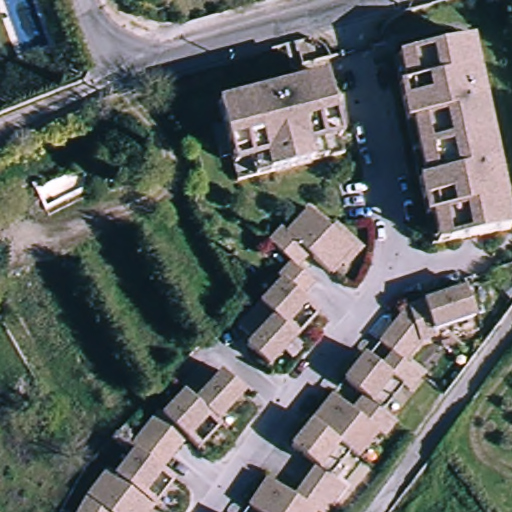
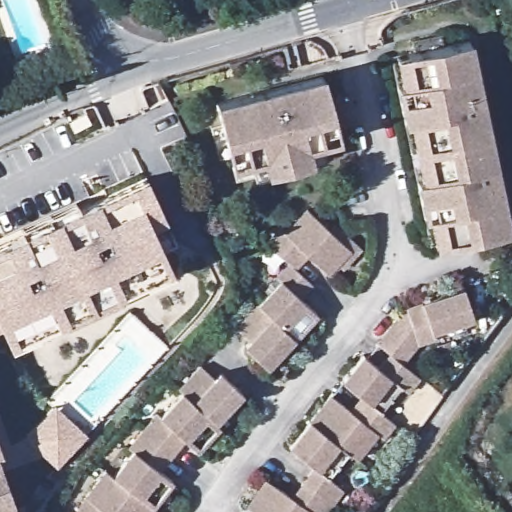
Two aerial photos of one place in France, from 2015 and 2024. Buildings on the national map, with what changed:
unchanged [(417,52),(447,45),(471,40),(511,228),(434,244),(394,57),(417,52)]
unchanged [(324,74),(344,153),(236,178),(231,154),(223,124),(218,100),(324,74)]
demolished [(94,190),(44,212),(34,188),(84,166),(94,190)]
new [(176,240),(161,246),(173,271),(8,347),(0,329),(0,245),(22,234),(18,227),(77,200),(80,206),(146,176),(166,219),(176,240)]
unchanged [(351,252),(329,276),(308,256),(296,269),(293,266),(269,244),(281,231),(286,236),(309,212),(351,252)]
unchanged [(304,300),(319,314),(296,338),(262,306),(284,282),(281,279),(293,266),(296,269),(299,273),(315,287),(304,300)]
unchanged [(397,307),(453,287),(463,315),(421,330),(423,337),(408,341),(394,359),(378,347),(370,342),(397,307)]
unchanged [(269,367),(248,348),(248,347),(253,342),(240,330),(262,306),(296,338),(269,367)]
unchanged [(355,355),(359,358),(370,342),(378,347),(394,359),(403,366),(409,371),(398,385),(394,382),(374,407),(360,396),(338,378),(355,355)]
unchanged [(171,389),(166,386),(186,363),(199,375),(203,369),(226,388),(202,416),(171,389)]
unchanged [(208,421),(186,446),(168,432),(156,446),(149,440),(133,426),(146,411),(149,414),(171,389),(202,416),(208,421)]
unchanged [(346,450),(323,432),(306,419),(326,395),(348,412),(360,396),(374,407),(389,418),(375,434),(371,431),(351,455),(346,450)]
new [(58,406),(64,413),(35,444),(28,438),(58,406)]
new [(59,418),(64,413),(89,436),(84,441),(59,418)]
new [(59,467),(54,462),(35,444),(40,438),(59,418),(78,436),(84,441),(59,467)]
unchanged [(293,473),(304,458),(287,446),(306,419),(323,432),(346,450),(328,475),(334,479),(321,494),(293,473)]
unchanged [(103,471),(124,445),(120,442),(133,426),(149,440),(156,446),(144,462),(163,476),(143,501),(103,471)]
new [(0,451),(0,448),(1,451),(0,451)]
new [(13,499),(10,500),(15,512),(0,512),(0,463),(6,480),(13,499)]
unchanged [(143,501),(135,512),(67,512),(76,492),(96,466),(103,471),(143,501)]
unchanged [(308,506),(304,512),(256,512),(244,504),(261,479),(281,491),(293,473),(321,494),(312,509),(308,506)]

